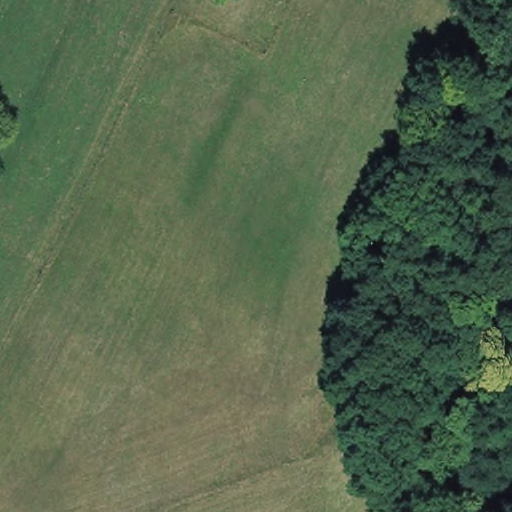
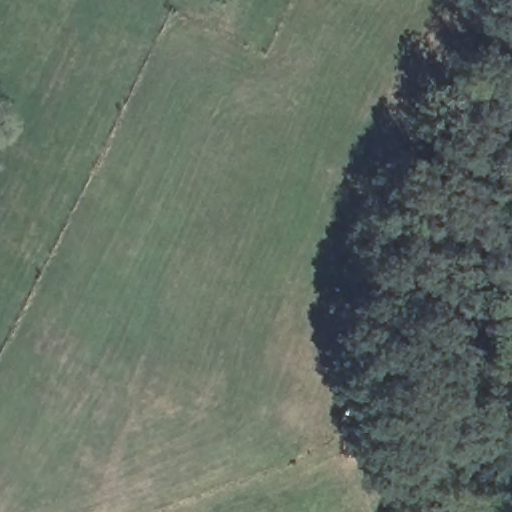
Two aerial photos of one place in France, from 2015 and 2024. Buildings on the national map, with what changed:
[]

